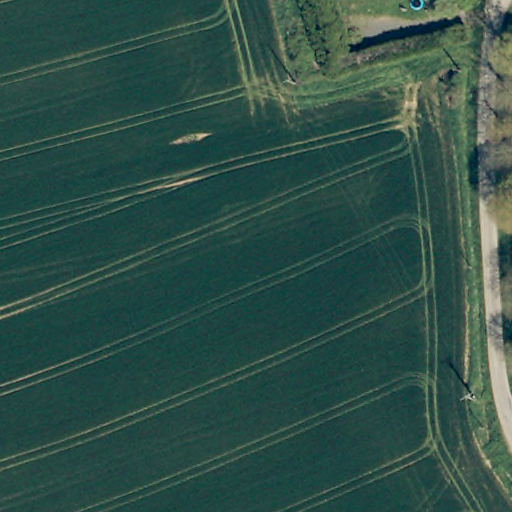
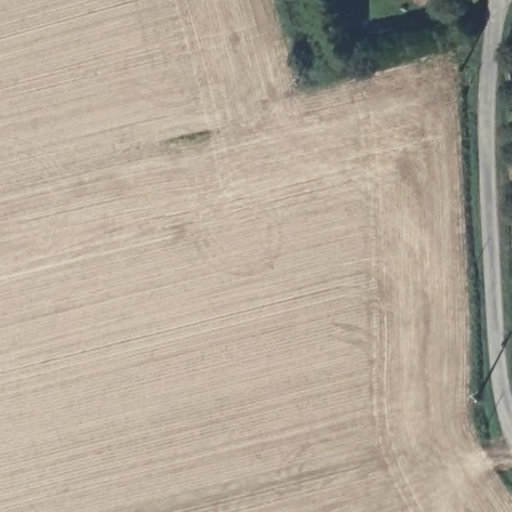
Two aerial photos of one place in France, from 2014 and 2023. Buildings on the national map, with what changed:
[]

